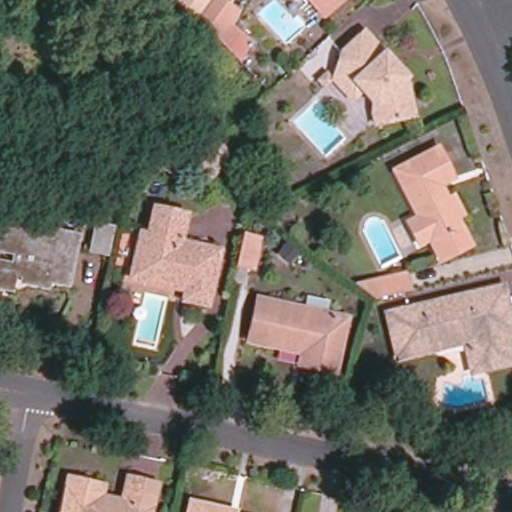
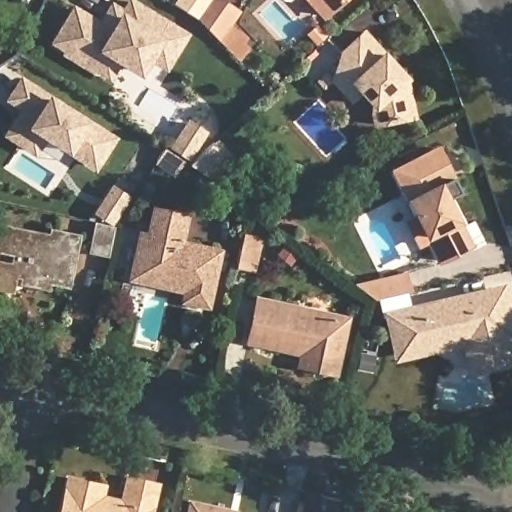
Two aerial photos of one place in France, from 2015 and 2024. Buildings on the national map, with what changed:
unchanged [(201,21),(192,13),(179,4),(181,0),(225,0),(231,4),(212,32),(201,21)]
unchanged [(312,0),(345,0),(327,16),(312,0)]
new [(121,59),(111,75),(55,40),(74,9),(99,24),(111,4),(115,6),(123,12),(130,1),(184,34),(165,64),(148,54),(139,69),(121,59)]
unchanged [(331,78),(332,74),(342,50),(362,32),(373,43),(388,59),(385,62),(396,74),(398,71),(405,79),(413,115),(372,124),(370,113),(372,105),(357,90),(348,98),(331,78)]
new [(24,108),(10,98),(22,79),(112,138),(94,165),(45,134),(34,150),(7,133),(19,115),(24,108)]
new [(189,164),(216,139),(231,156),(208,177),(189,164)]
unchanged [(407,217),(417,212),(394,165),(437,144),(455,179),(442,185),(446,194),(453,191),(462,210),(456,214),(470,240),(440,255),(431,238),(430,234),(419,240),(407,217)]
new [(154,164),(164,148),(182,159),(171,175),(154,164)]
unchanged [(219,252),(207,306),(182,300),(186,284),(180,283),(177,289),(130,279),(140,234),(147,236),(153,209),(186,216),(179,245),(204,250),(205,249),(219,252)]
unchanged [(89,252),(96,222),(114,225),(107,255),(89,252)]
unchanged [(54,234),(75,239),(65,283),(46,279),(45,285),(25,281),(26,274),(12,272),(9,288),(0,286),(0,228),(53,239),(54,234)]
unchanged [(258,240),(252,268),(235,264),(240,242),(242,236),(258,240)]
unchanged [(404,269),(408,284),(369,294),(351,280),(404,269)]
unchanged [(495,286),(500,307),(490,310),(493,323),(498,322),(506,355),(478,362),(474,344),(465,346),(459,329),(423,337),(425,343),(398,349),(393,333),(391,334),(385,311),(495,286)]
unchanged [(257,300),(346,319),(335,372),(302,365),(305,354),(249,341),(257,300)]
unchanged [(64,479),(97,487),(96,497),(117,502),(123,479),(152,485),(145,512),(131,512),(57,512),(64,479)]
unchanged [(192,507),(219,512),(191,512),(192,507)]

